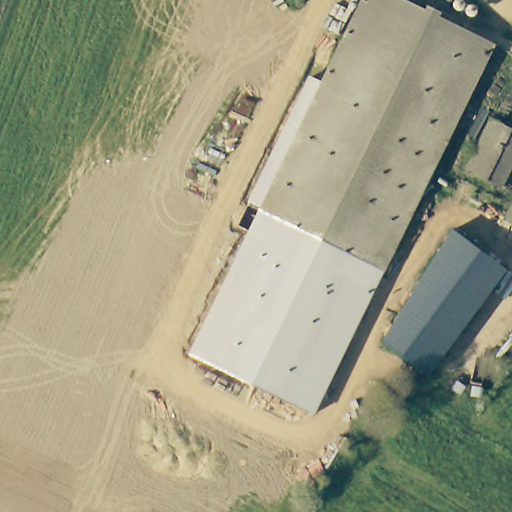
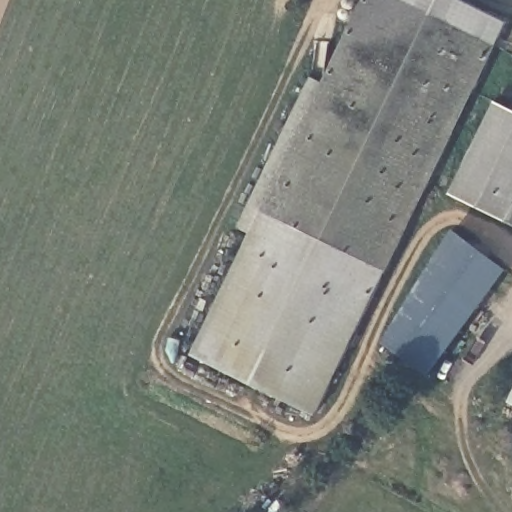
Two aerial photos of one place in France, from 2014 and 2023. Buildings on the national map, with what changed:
unchanged [(266,209),(369,0),(408,0),(501,49),(387,271),(266,209)]
new [(459,0),(512,25),(512,27),(501,49),(408,0),(459,0)]
unchanged [(190,355),(260,209),(250,205),(311,77),(327,85),(266,209),(387,271),(315,416),(190,355)]
new [(450,190),(492,101),(512,111),(512,208),(507,218),(450,190)]
demolished [(468,166),(496,116),(512,124),(512,168),(503,185),(468,166)]
unchanged [(507,218),(512,208),(512,220),(507,218)]
unchanged [(382,343),(453,230),(507,272),(429,378),(382,343)]

